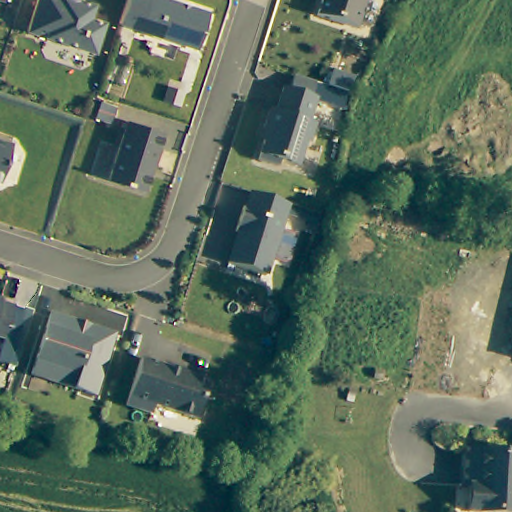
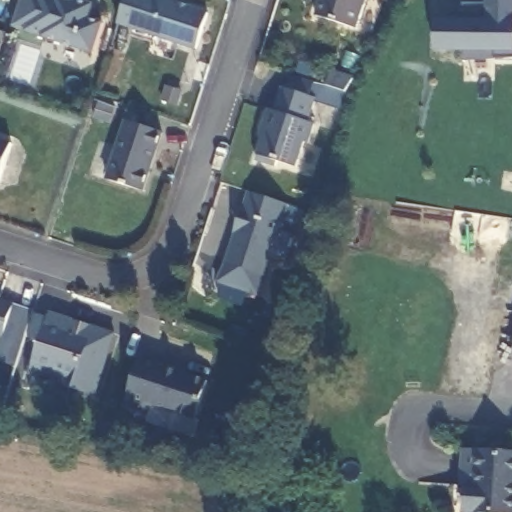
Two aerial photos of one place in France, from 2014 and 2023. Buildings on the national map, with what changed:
unchanged [(34,0),(86,0),(91,1),(87,14),(101,19),(92,48),(25,27),(34,0)]
unchanged [(141,0),(174,0),(204,10),(191,45),(132,25),(141,0)]
unchanged [(319,0),(363,0),(356,25),(315,12),(319,0)]
new [(464,60),(463,52),(437,52),(437,19),(447,19),(447,5),(464,6),(464,3),(486,3),(486,0),(512,0),(512,58),(495,58),(464,60)]
unchanged [(326,82),(330,68),(353,75),(345,88),(326,82)]
unchanged [(296,164),(277,158),(276,163),(256,157),(265,126),(261,125),(267,106),(274,108),(281,83),(287,85),(291,71),(324,82),(320,96),(315,95),(308,119),(314,121),(308,140),(304,138),(296,164)]
unchanged [(161,98),(165,86),(179,91),(175,103),(161,98)]
unchanged [(165,133),(145,192),(107,180),(127,121),(165,133)]
unchanged [(13,143),(2,181),(0,181),(0,139),(13,143)]
unchanged [(226,260),(236,228),(234,228),(242,203),(244,204),(249,189),(287,201),(264,272),(226,260)]
unchanged [(13,300),(2,333),(0,333),(0,296),(13,300)]
unchanged [(48,309),(72,317),(70,321),(89,327),(91,323),(113,330),(94,391),(29,370),(48,309)]
unchanged [(139,356),(163,363),(163,361),(182,367),(181,369),(207,377),(195,415),(152,401),(149,410),(124,402),(139,356)]
unchanged [(462,485),(464,452),(512,455),(512,512),(465,512),(467,486),(462,485)]

